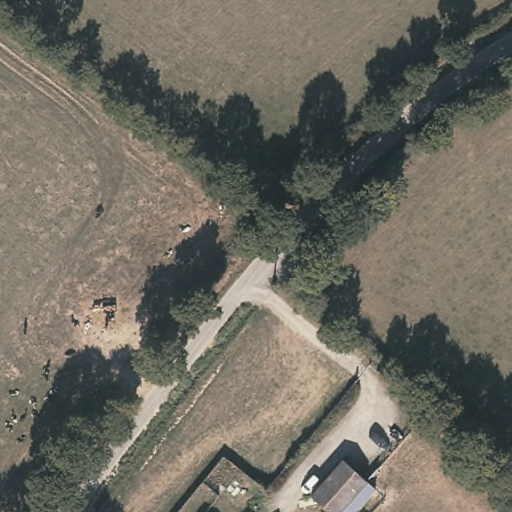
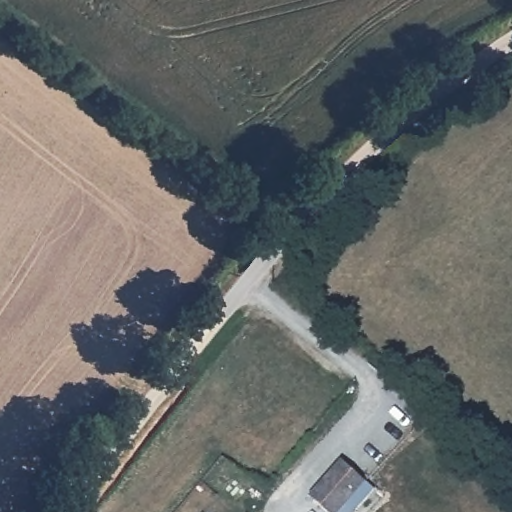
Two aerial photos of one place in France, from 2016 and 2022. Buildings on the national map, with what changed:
unchanged [(346,512),(343,512),(337,507),(333,512),(310,492),(340,455),(372,481),(346,512)]

